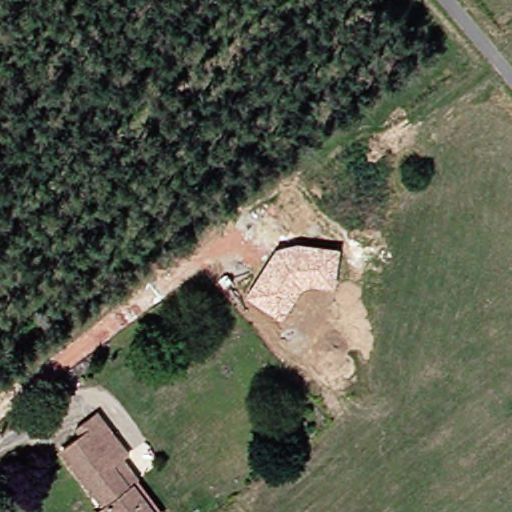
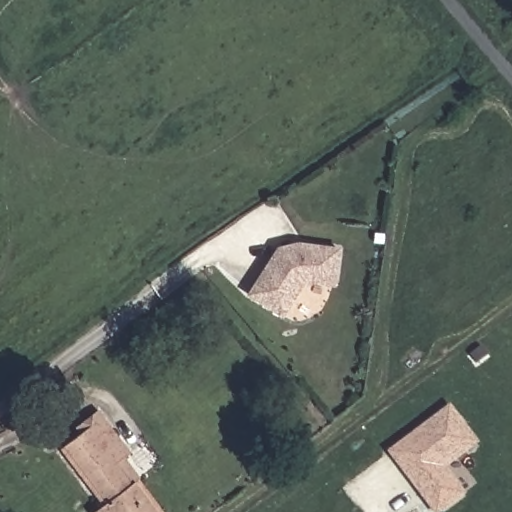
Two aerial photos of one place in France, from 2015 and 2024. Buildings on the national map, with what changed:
unchanged [(245,295),(276,248),(299,243),(340,249),(335,288),(311,285),(301,290),(282,319),(245,295)]
new [(480,443),(447,468),(467,494),(441,512),(434,512),(388,451),(450,404),(480,443)]
unchanged [(95,507),(99,504),(55,446),(73,433),(67,426),(89,410),(121,453),(113,459),(130,481),(126,484),(147,512),(89,512),(95,507)]

